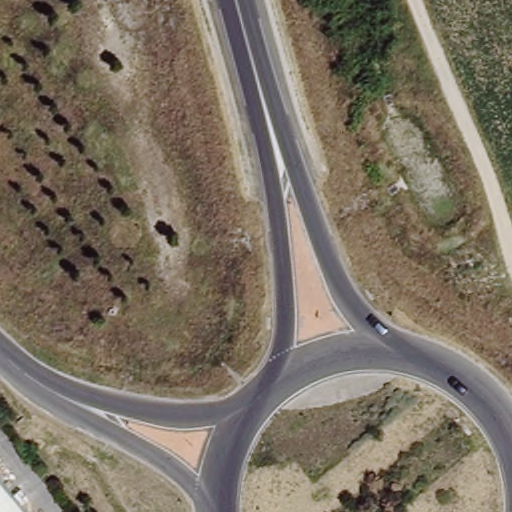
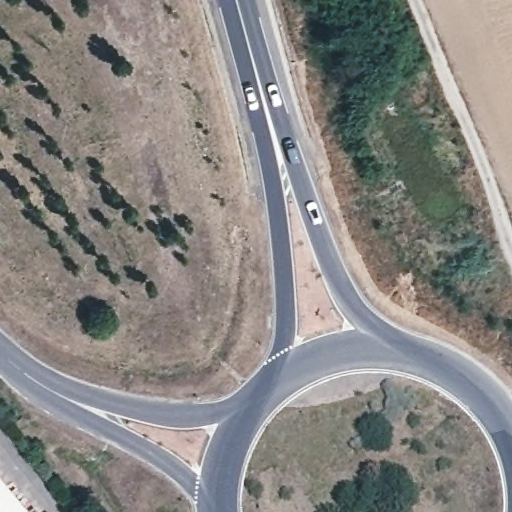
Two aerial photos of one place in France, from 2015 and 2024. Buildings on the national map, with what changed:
unchanged [(0,512),(0,478),(28,512),(0,512)]

